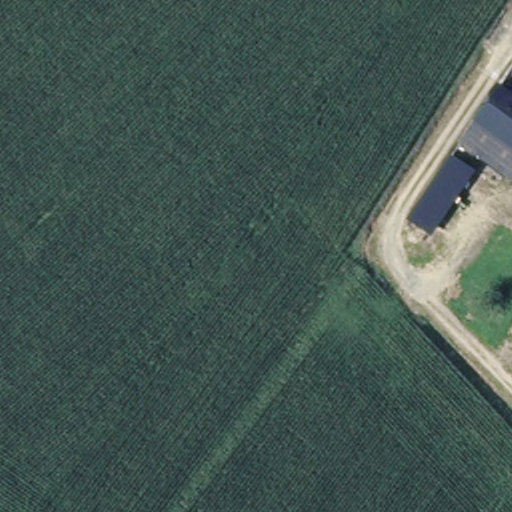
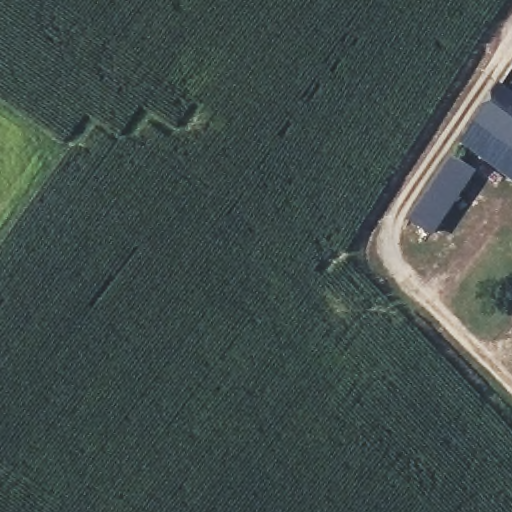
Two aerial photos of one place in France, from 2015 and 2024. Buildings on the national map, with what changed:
unchanged [(458,140),(496,85),(512,97),(512,183),(480,157),(458,140)]
unchanged [(410,216),(448,157),(467,174),(430,230),(410,216)]

